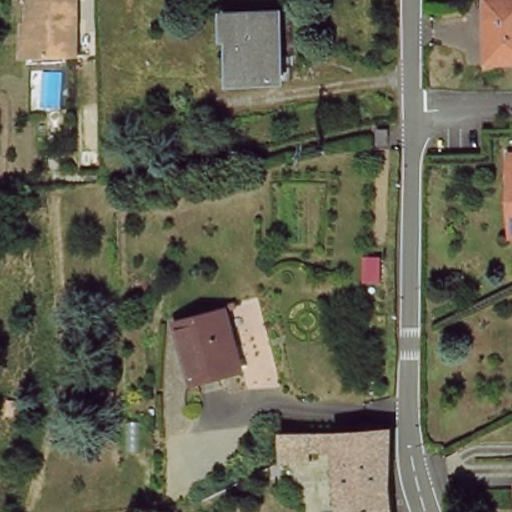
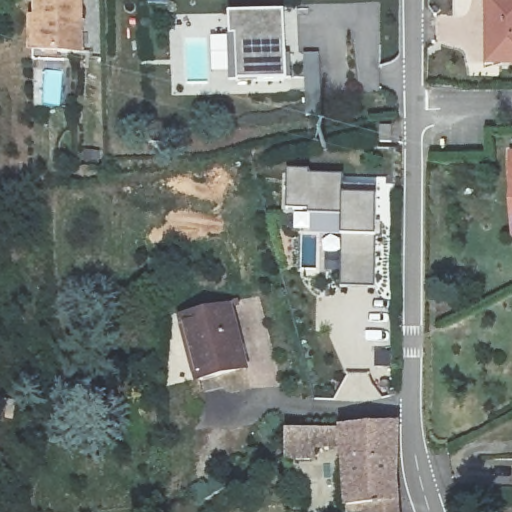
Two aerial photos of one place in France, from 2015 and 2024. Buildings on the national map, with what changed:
unchanged [(82,0),(83,55),(45,56),(35,56),(35,24),(40,24),(39,0),(82,0)]
unchanged [(493,0),(512,0),(512,63),(505,63),(495,64),(494,35),(493,0)]
unchanged [(241,28),(237,26),(238,4),(290,4),(292,71),(242,73),(241,28)]
unchanged [(371,96),(387,96),(387,109),(371,108),(371,96)]
new [(344,285),(343,236),(343,215),(311,215),(310,210),(288,210),(291,173),(311,173),(311,177),(345,179),(344,186),(378,188),(376,198),(376,236),(375,289),(344,285)]
unchanged [(187,320),(231,308),(246,364),(201,376),(187,320)]
unchanged [(397,503),(397,512),(360,512),(360,509),(345,511),(341,446),(311,447),(313,459),(284,459),(284,432),(394,428),(397,503)]

